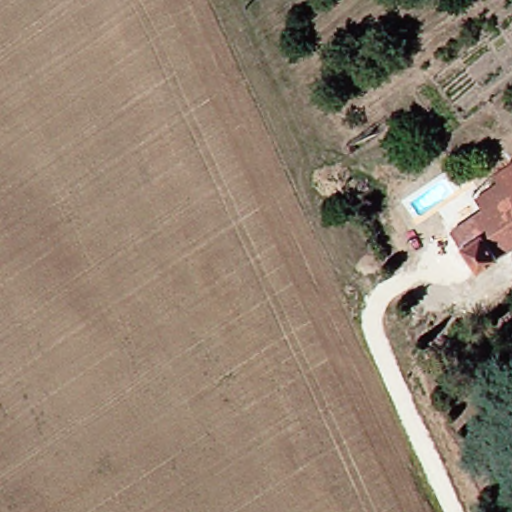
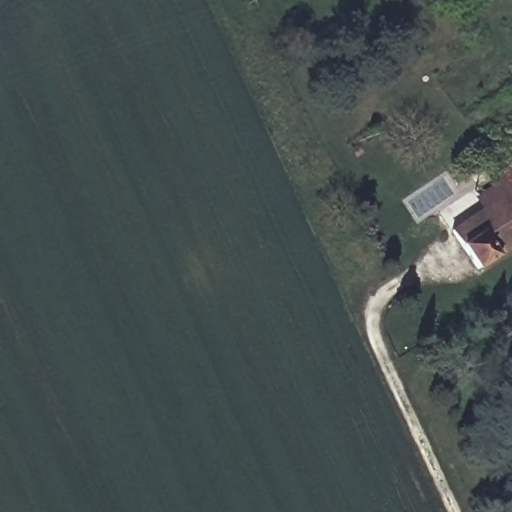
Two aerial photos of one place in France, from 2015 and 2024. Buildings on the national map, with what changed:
unchanged [(504,196),(489,177),(512,162),(512,206),(504,196)]
unchanged [(480,275),(452,235),(504,196),(512,206),(512,253),(480,275)]

